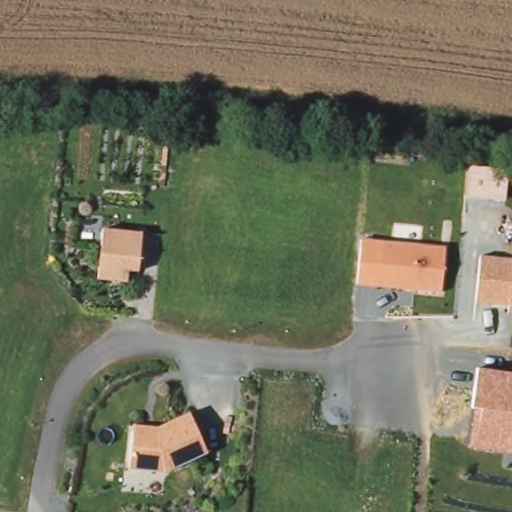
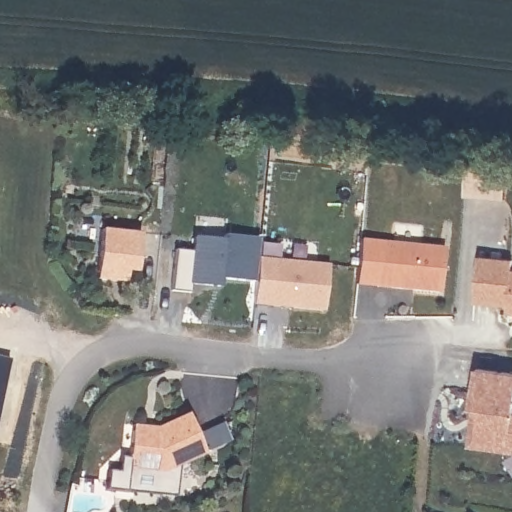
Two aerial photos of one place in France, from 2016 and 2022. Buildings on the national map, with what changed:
unchanged [(466,166),(507,170),(505,200),(466,197),(466,166)]
unchanged [(102,229),(142,232),(139,273),(127,273),(127,283),(98,280),(102,229)]
new [(192,253),(194,237),(225,240),(226,235),(259,238),(258,258),(328,264),(324,311),(253,304),(255,280),(219,279),(219,288),(189,285),(188,292),(172,290),(175,251),(192,253)]
unchanged [(377,287),(355,286),(360,237),(381,242),(377,287)]
unchanged [(381,242),(444,248),(440,293),(377,287),(381,242)]
unchanged [(512,313),(507,313),(508,309),(472,305),(477,254),(512,257),(512,313)]
new [(8,358),(0,396),(0,356),(8,358)]
unchanged [(512,454),(467,448),(477,369),(512,374),(512,454)]
unchanged [(154,428),(186,413),(204,453),(162,473),(125,470),(130,424),(154,428)]
new [(125,470),(162,473),(179,465),(176,496),(106,489),(108,472),(118,474),(120,458),(126,459),(125,470)]

